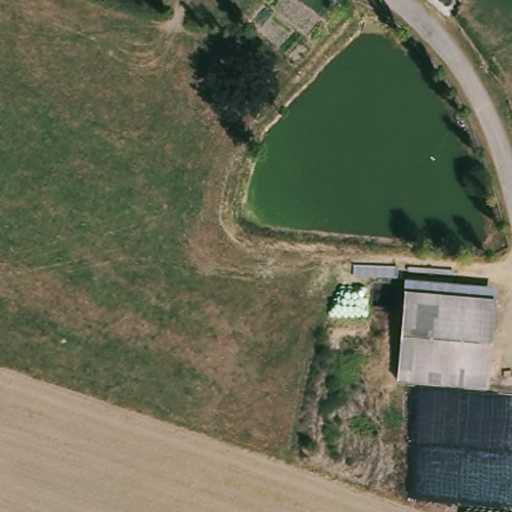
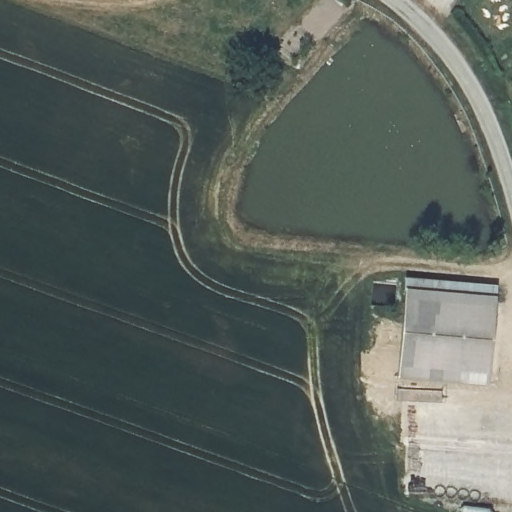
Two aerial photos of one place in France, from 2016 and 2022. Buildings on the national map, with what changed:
unchanged [(491,389),(397,384),(404,280),(498,288),(491,389)]

